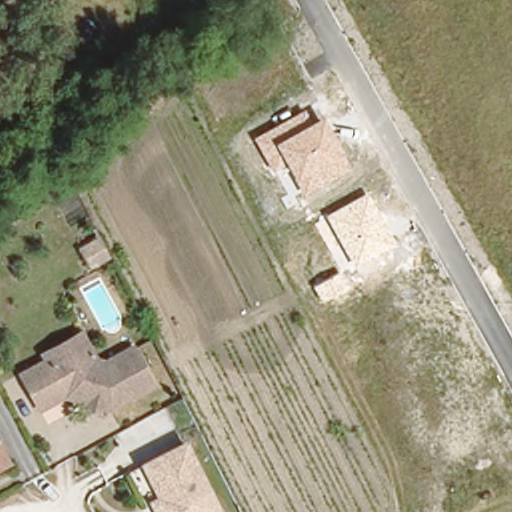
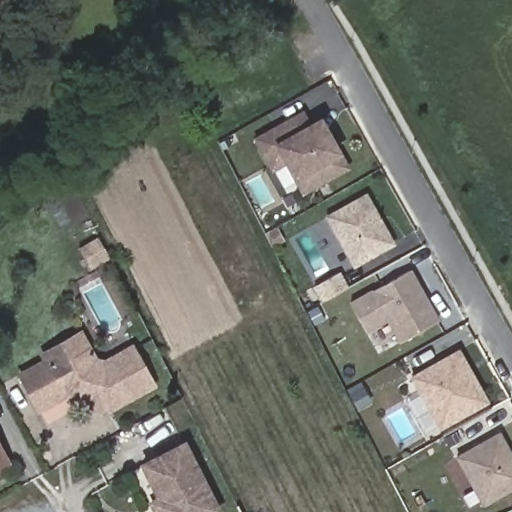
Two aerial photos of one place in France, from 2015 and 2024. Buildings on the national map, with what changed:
unchanged [(302,194),(286,165),(271,173),(254,138),(305,111),(311,120),(322,115),(350,169),(302,194)]
unchanged [(353,268),(326,215),(369,193),(396,244),(353,268)]
unchanged [(99,242),(108,259),(90,268),(81,251),(99,242)]
new [(366,333),(349,302),(412,268),(440,320),(399,344),(386,321),(366,333)]
unchanged [(86,411),(87,405),(64,398),(39,412),(19,377),(46,363),(41,357),(80,337),(87,349),(95,363),(100,364),(106,364),(132,349),(154,388),(112,411),(102,409),(100,415),(86,411)]
new [(439,430),(410,376),(459,348),(488,402),(439,430)]
new [(456,456),(500,432),(512,454),(512,489),(483,505),(456,456)]
unchanged [(2,454),(0,451),(0,435),(8,450),(12,456),(0,463),(0,455),(2,454)]
unchanged [(154,495),(138,462),(179,443),(214,511),(211,512),(151,512),(149,507),(145,499),(154,495)]
unchanged [(2,454),(0,455),(0,451),(2,454)]

